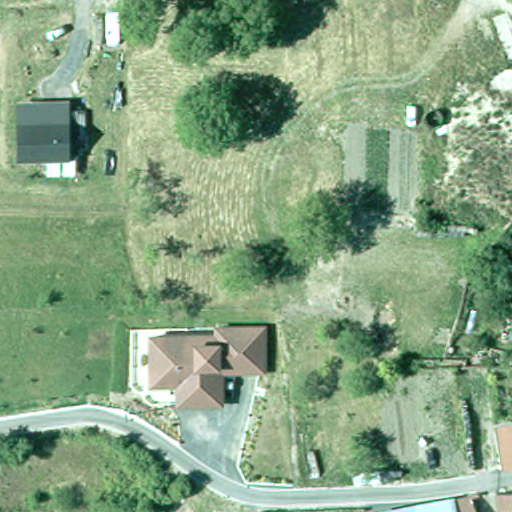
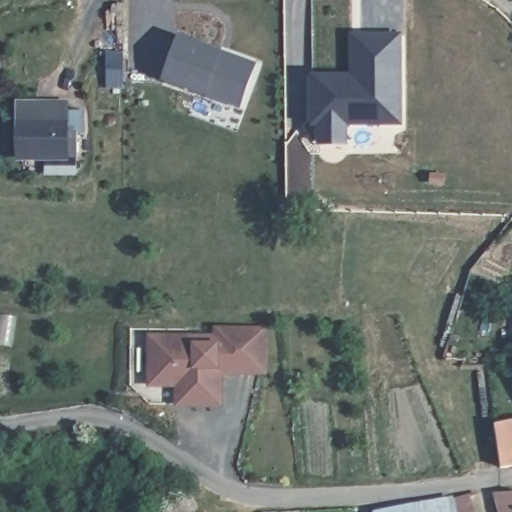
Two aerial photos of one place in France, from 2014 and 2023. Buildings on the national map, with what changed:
new [(257,63),(238,111),(161,81),(178,34),(257,63)]
new [(402,34),(402,126),(347,126),(347,144),(317,144),(317,127),(310,127),(310,72),(349,72),(350,34),(402,34)]
demolished [(458,158),(488,157),(485,81),(483,66),(512,64),(512,220),(491,220),(457,221),(458,158)]
unchanged [(70,98),(72,161),(17,161),(17,97),(70,98)]
unchanged [(177,385),(150,385),(150,336),(196,336),(216,336),(216,328),(263,328),(263,372),(221,372),(220,405),(185,405),(177,405),(177,385)]
unchanged [(495,423),(512,419),(512,466),(501,467),(495,423)]
unchanged [(193,512),(172,512),(167,502),(182,495),(194,512),(193,512)]
unchanged [(496,502),(512,501),(512,512),(499,512),(496,502)]
unchanged [(453,508),(470,503),(473,512),(435,512),(453,508)]

